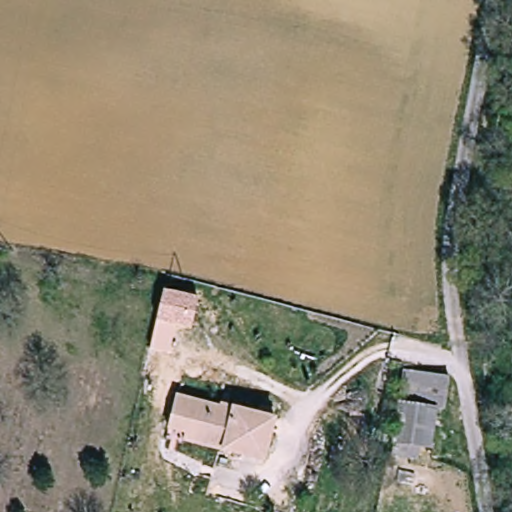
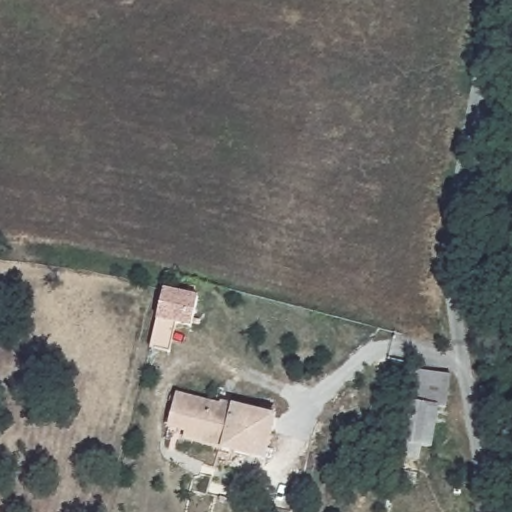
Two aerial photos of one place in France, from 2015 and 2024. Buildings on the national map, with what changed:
unchanged [(157,319),(163,289),(197,297),(190,328),(176,324),(169,352),(150,348),(157,319)]
unchanged [(450,402),(442,401),(434,444),(397,437),(410,364),(454,372),(450,402)]
unchanged [(189,426),(173,422),(180,394),(222,405),(224,401),(278,416),(267,458),(204,441),(187,436),(189,426)]

